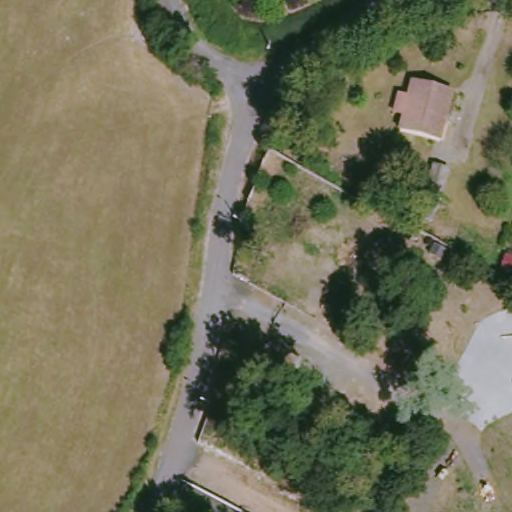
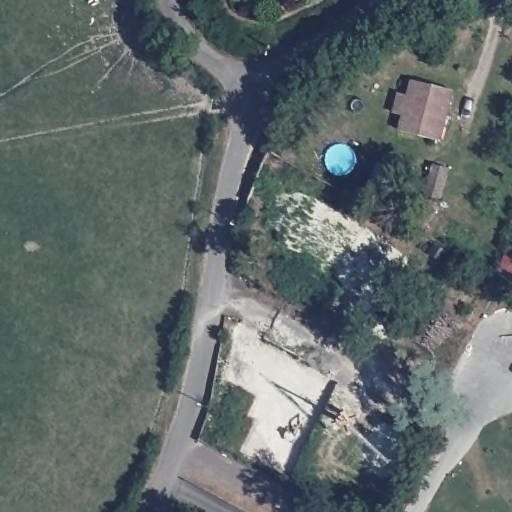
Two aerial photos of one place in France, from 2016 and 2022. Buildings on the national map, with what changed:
unchanged [(452,90),(440,141),(403,131),(407,117),(395,115),(400,96),(410,99),(415,81),(452,90)]
unchanged [(425,195),(434,166),(450,170),(442,200),(425,195)]
unchanged [(369,187),(376,172),(394,181),(387,196),(369,187)]

